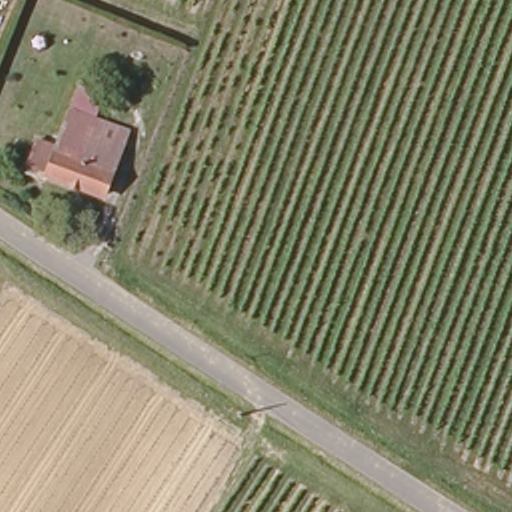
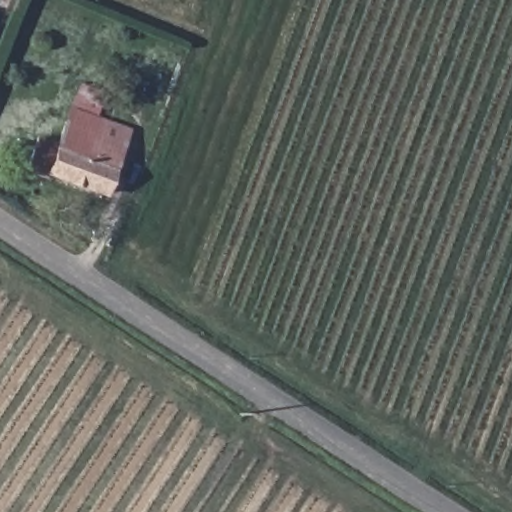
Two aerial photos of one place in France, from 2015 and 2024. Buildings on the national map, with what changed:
unchanged [(24,170),(35,138),(53,145),(66,108),(76,81),(102,91),(93,118),(124,129),(100,194),(41,172),(40,176),(24,170)]

